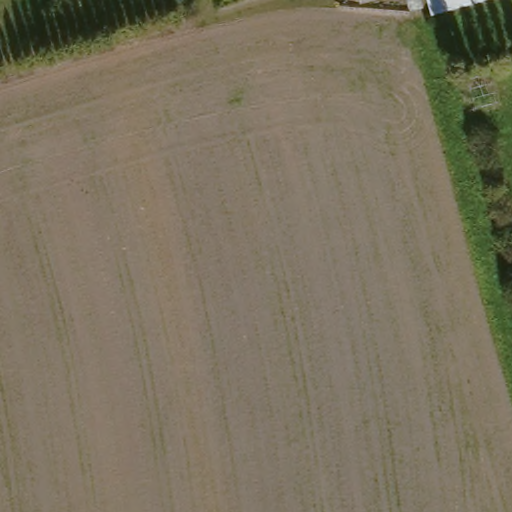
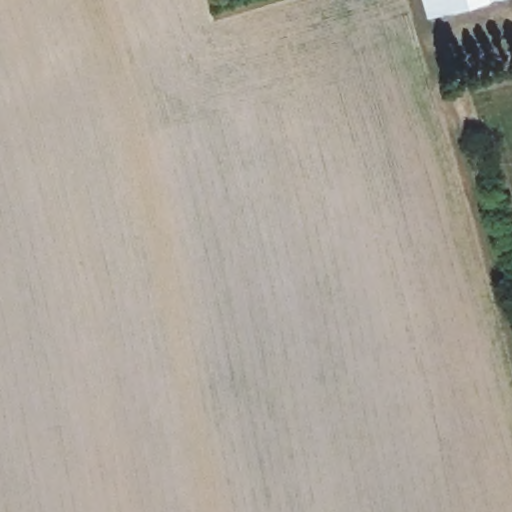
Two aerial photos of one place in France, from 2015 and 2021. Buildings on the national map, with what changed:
unchanged [(440,15),(435,0),(486,0),(487,2),(440,15)]
unchanged [(486,0),(495,0),(487,2),(486,0)]

